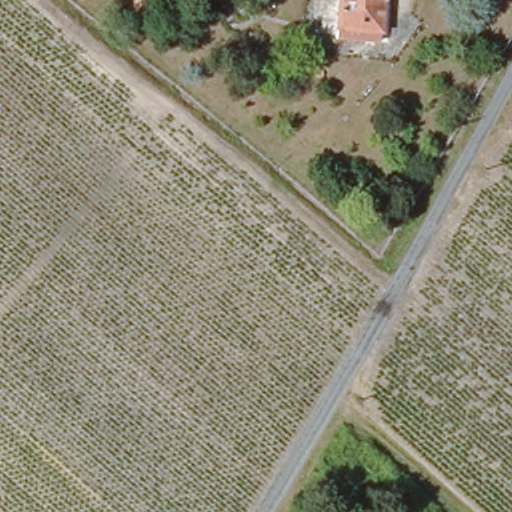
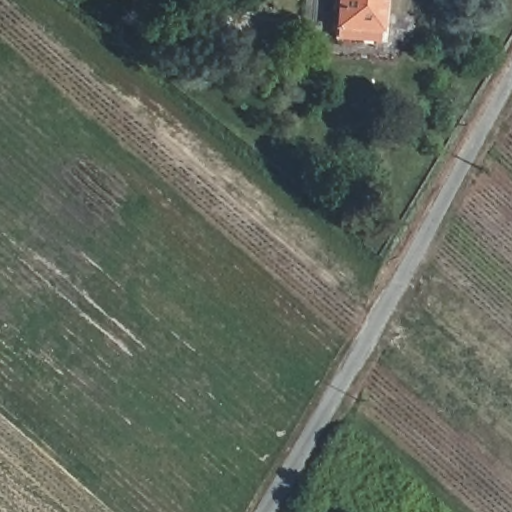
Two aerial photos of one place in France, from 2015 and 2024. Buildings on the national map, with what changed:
unchanged [(336,0),(380,0),(376,43),(345,38),(333,36),(336,0)]

